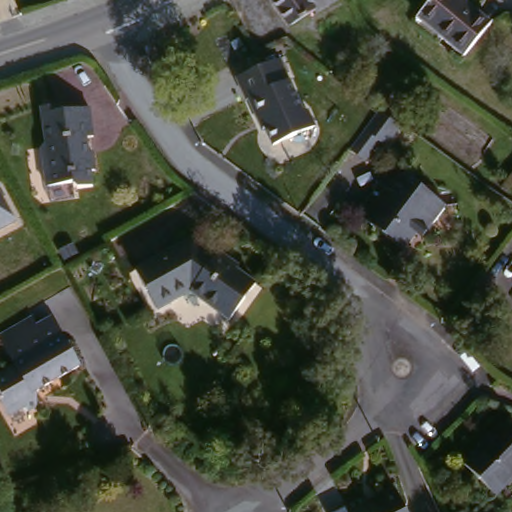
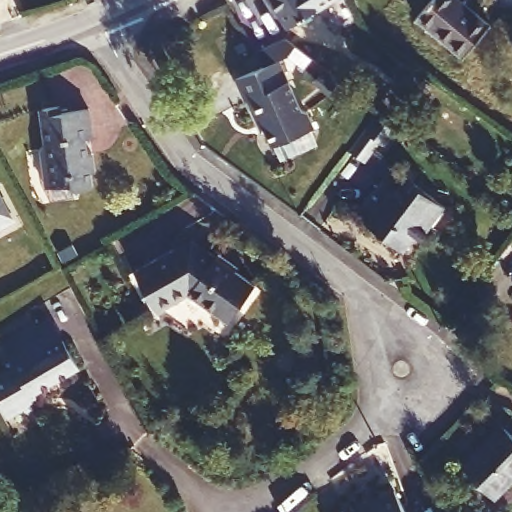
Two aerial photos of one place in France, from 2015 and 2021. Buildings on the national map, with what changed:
unchanged [(292,25),(275,0),(330,0),(292,25)]
unchanged [(492,24),(466,55),(422,16),(436,0),(466,0),(492,24)]
unchanged [(263,135),(259,125),(250,106),(248,107),(237,85),(280,65),(303,114),(308,116),(317,132),(279,150),(276,152),(268,136),(265,137),(263,135)]
unchanged [(60,100),(61,105),(69,105),(92,104),(92,116),(95,125),(89,127),(91,148),(97,148),(99,167),(95,167),(96,185),(75,187),(75,181),(50,182),(46,144),(46,122),(45,116),(46,115),(45,100),(60,100)]
unchanged [(350,149),(355,141),(378,108),(400,124),(386,145),(380,140),(371,152),(366,160),(350,149)]
unchanged [(397,165),(453,204),(438,222),(433,220),(412,249),(362,212),(397,165)]
unchanged [(2,187),(17,217),(0,227),(0,188),(2,187)]
unchanged [(174,251),(194,241),(204,250),(209,248),(226,263),(232,259),(246,273),(249,279),(262,290),(232,320),(197,293),(162,311),(142,268),(174,251)]
unchanged [(87,366),(45,386),(35,409),(29,402),(12,408),(0,382),(0,372),(22,361),(11,339),(6,330),(42,313),(47,322),(62,315),(87,366)]
unchanged [(512,429),(512,483),(500,495),(467,462),(506,423),(512,429)]
unchanged [(376,507),(387,502),(385,498),(403,490),(415,512),(349,512),(372,500),(376,507)]

